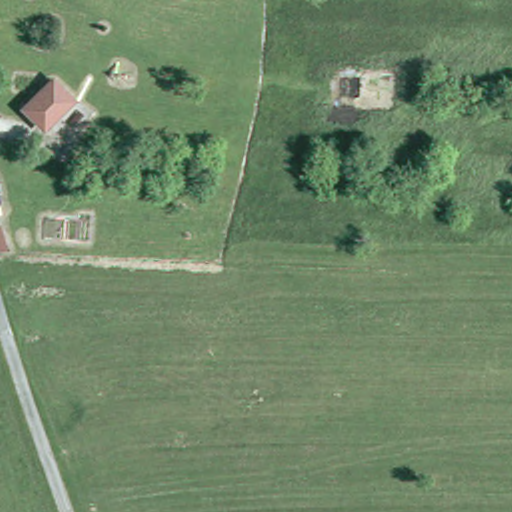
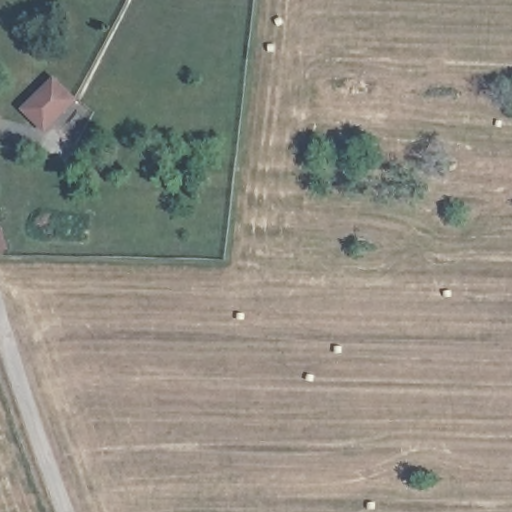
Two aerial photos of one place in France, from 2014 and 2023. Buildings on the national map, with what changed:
unchanged [(35,139),(15,119),(44,91),(64,111),(35,139)]

